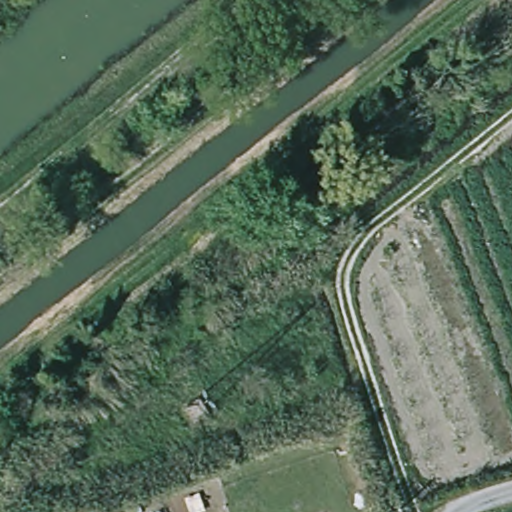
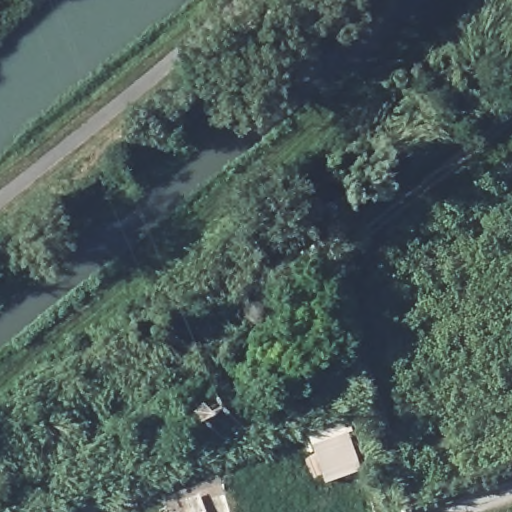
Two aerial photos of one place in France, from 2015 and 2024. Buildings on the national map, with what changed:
new [(344,419),(345,423),(343,424),(344,427),(349,425),(352,431),(347,433),(360,469),(324,483),(306,432),(344,419)]

